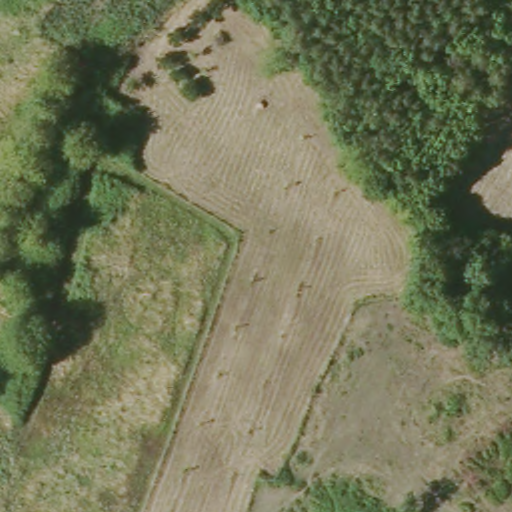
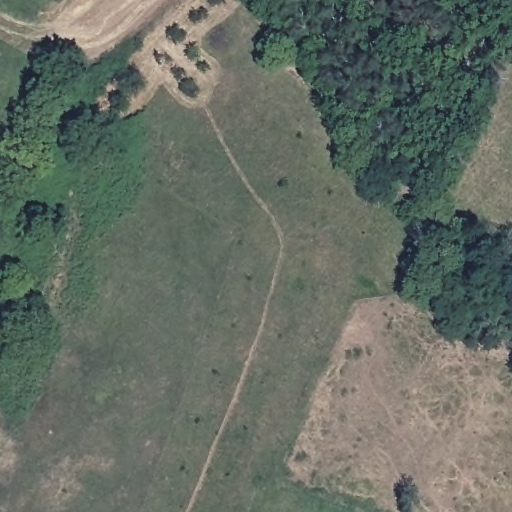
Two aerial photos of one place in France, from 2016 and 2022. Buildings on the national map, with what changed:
[]

